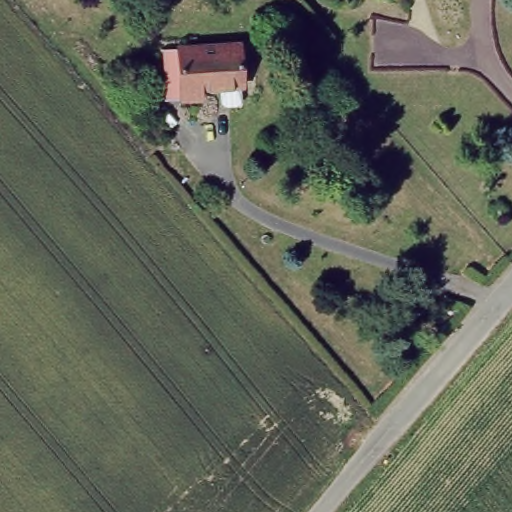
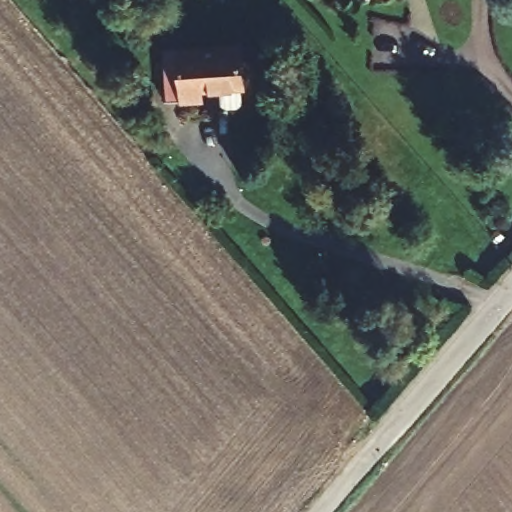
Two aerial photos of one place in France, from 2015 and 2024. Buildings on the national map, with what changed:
unchanged [(170,44),(243,44),(243,89),(204,90),(203,98),(170,99),(170,44)]

